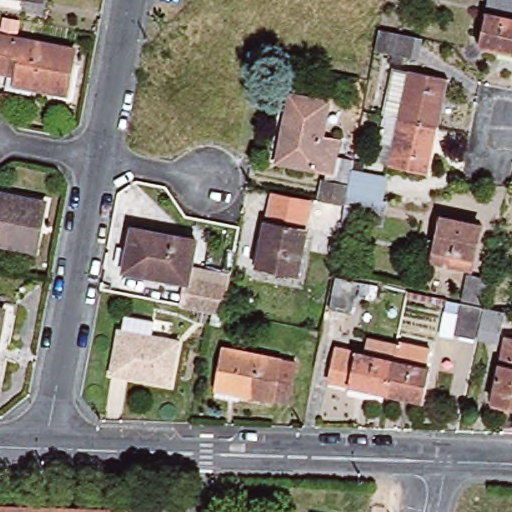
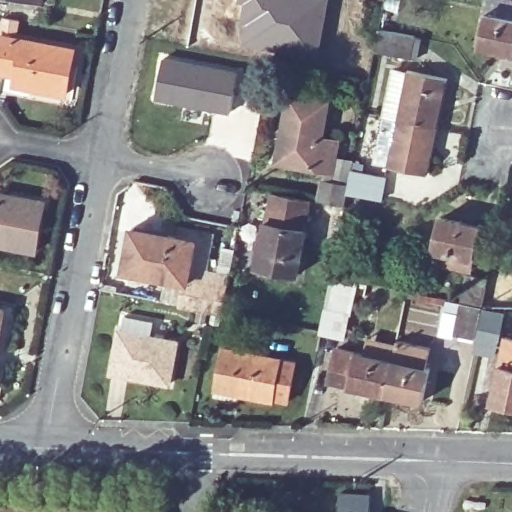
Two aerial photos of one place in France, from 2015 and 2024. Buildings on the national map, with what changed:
unchanged [(30,0),(47,0),(46,3),(30,0)]
new [(330,0),(318,56),(239,45),(242,4),(237,3),(237,0),(330,0)]
unchanged [(479,44),(489,0),(512,0),(512,51),(479,44)]
unchanged [(382,32),(419,40),(414,60),(378,52),(382,32)]
unchanged [(12,84),(14,72),(0,69),(0,34),(72,47),(64,94),(12,84)]
new [(164,56),(240,70),(231,114),(155,98),(164,56)]
unchanged [(395,71),(411,75),(411,71),(449,80),(439,129),(401,121),(386,119),(395,71)]
unchanged [(280,161),(293,91),(332,99),(324,139),(341,141),(335,172),(280,161)]
unchanged [(439,129),(429,177),(392,170),(401,121),(439,129)]
unchanged [(326,200),(329,180),(353,185),(356,168),(389,176),(385,199),(351,192),(349,204),(326,200)]
unchanged [(314,197),(299,274),(259,266),(274,190),(314,197)]
unchanged [(0,242),(0,192),(44,200),(34,248),(0,242)]
unchanged [(469,271),(429,262),(439,219),(479,227),(469,271)]
unchanged [(183,282),(121,270),(130,228),(193,240),(183,282)]
unchanged [(460,301),(468,275),(489,279),(483,305),(460,301)]
unchanged [(355,282),(348,314),(328,310),(334,278),(355,282)]
unchanged [(505,335),(501,350),(469,340),(470,336),(454,333),(458,313),(445,310),(448,300),(478,307),(480,307),(509,314),(505,335)]
unchanged [(0,311),(6,312),(0,343),(0,311)]
unchanged [(172,387),(111,375),(119,333),(123,334),(126,320),(156,325),(153,340),(179,345),(172,387)]
unchanged [(491,399),(501,350),(505,335),(512,337),(512,403),(491,399)]
unchanged [(392,360),(397,340),(428,346),(423,365),(428,367),(420,400),(386,391),(392,360)]
unchanged [(289,398),(274,395),(274,397),(220,386),(228,346),(296,360),(289,398)]
unchanged [(386,391),(330,378),(337,347),(392,360),(386,391)]
unchanged [(0,505),(156,511),(156,512),(0,512),(0,505)]

